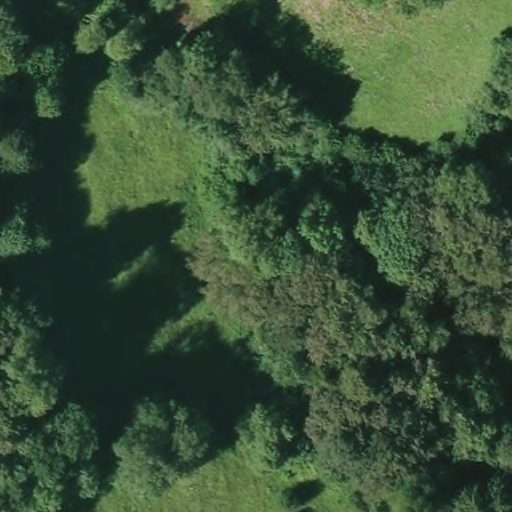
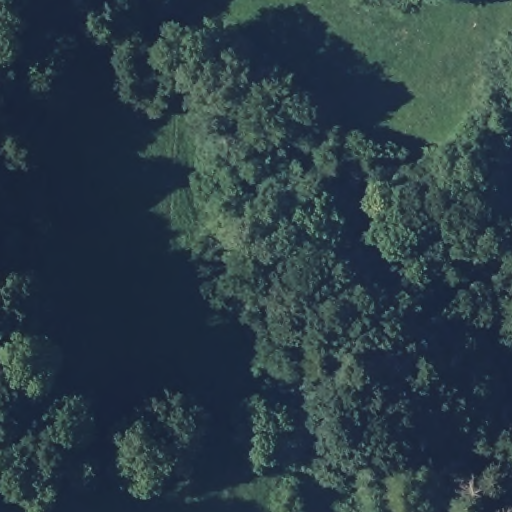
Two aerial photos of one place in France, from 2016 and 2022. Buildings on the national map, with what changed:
[]

